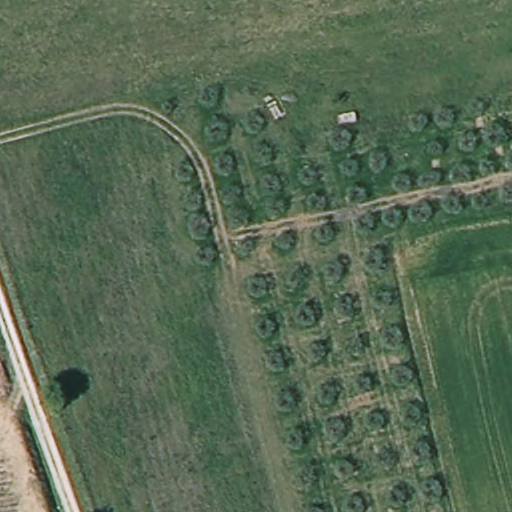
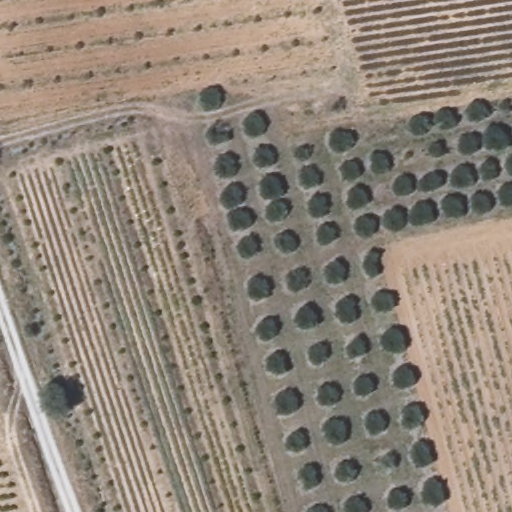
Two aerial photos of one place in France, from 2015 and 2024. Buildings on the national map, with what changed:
[]

